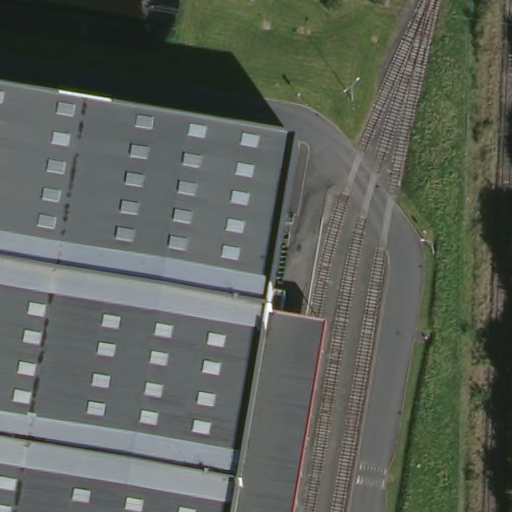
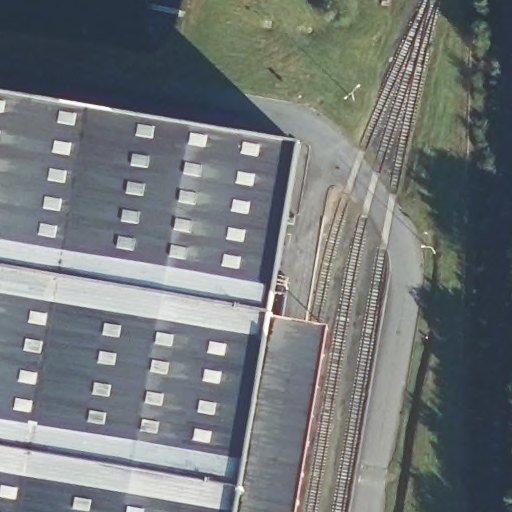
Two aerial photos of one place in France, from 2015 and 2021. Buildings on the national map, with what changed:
unchanged [(300,146),(272,320),(331,327),(298,512),(0,512),(0,97),(300,146)]

